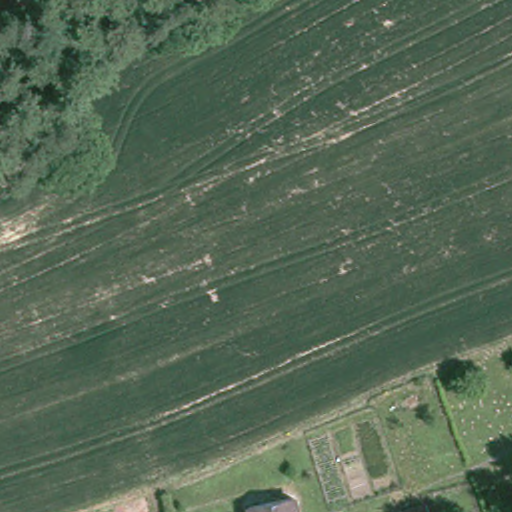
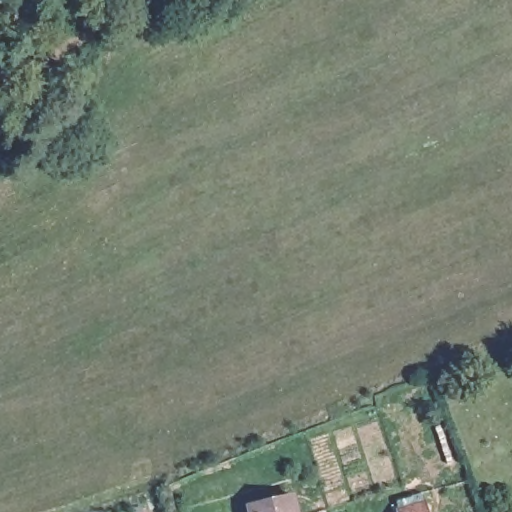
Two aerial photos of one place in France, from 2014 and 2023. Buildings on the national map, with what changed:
unchanged [(301,512),(254,512),(252,503),(296,494),(301,512)]
unchanged [(424,506),(426,512),(400,512),(424,506)]

